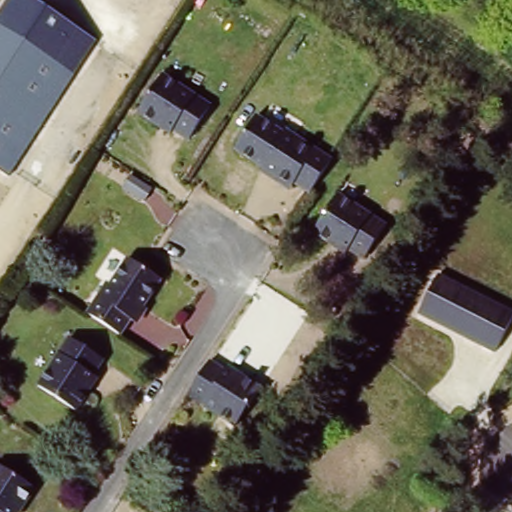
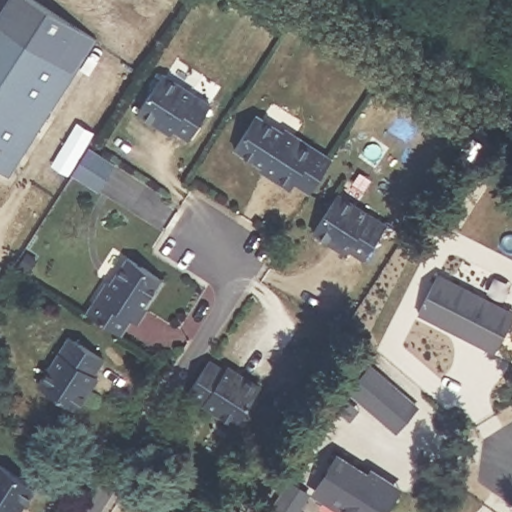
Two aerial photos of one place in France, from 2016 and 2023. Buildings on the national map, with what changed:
unchanged [(10,172),(0,167),(0,10),(6,0),(34,0),(94,35),(10,172)]
unchanged [(157,127),(137,114),(162,75),(211,106),(189,140),(173,129),(169,136),(157,127)]
unchanged [(237,150),(260,116),(286,134),(289,130),(330,159),(310,191),(279,172),(276,176),(262,166),(237,150)]
unchanged [(141,199),(120,185),(129,172),(150,186),(141,199)]
unchanged [(339,251),(319,237),(344,198),(388,228),(367,260),(351,249),(347,256),(339,251)]
unchanged [(137,319),(125,336),(92,315),(112,285),(117,287),(135,262),(171,285),(152,311),(144,323),(137,319)]
unchanged [(417,316),(439,274),(512,311),(512,317),(494,354),(417,316)]
unchanged [(95,375),(87,386),(93,390),(81,408),(41,383),(70,339),(104,361),(95,375)]
unchanged [(242,431),(194,400),(217,365),(236,378),(239,374),(249,381),(270,394),(242,431)]
new [(369,365),(415,405),(395,428),(349,388),(369,365)]
new [(366,475),(369,470),(383,480),(399,490),(396,495),(384,512),(343,512),(321,497),(311,491),(326,468),(336,454),(366,475)]
unchanged [(6,512),(0,512),(0,463),(33,485),(21,502),(14,512),(7,512),(6,512)]
new [(291,483),(307,494),(296,512),(280,512),(274,508),(291,483)]

